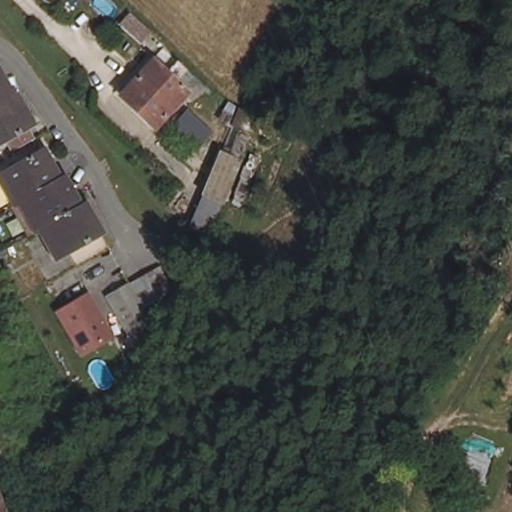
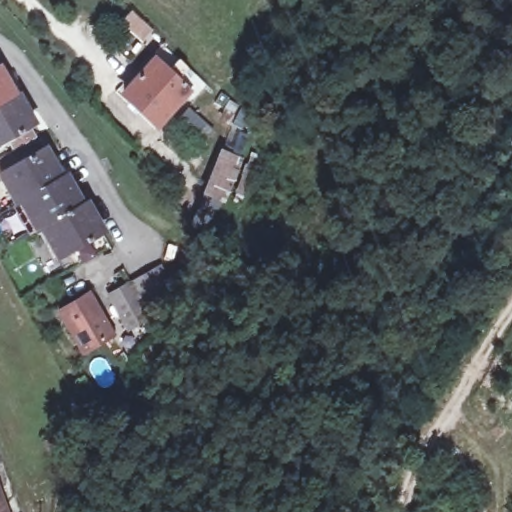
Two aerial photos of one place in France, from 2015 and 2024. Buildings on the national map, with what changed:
unchanged [(139,49),(115,26),(130,10),(156,31),(139,49)]
unchanged [(147,128),(115,98),(149,61),(145,56),(150,49),(170,69),(162,80),(166,85),(177,74),(192,90),(182,101),(177,97),(147,128)]
unchanged [(15,96),(0,106),(0,70),(15,96)]
unchanged [(15,96),(20,94),(37,124),(0,147),(0,106),(15,96)]
unchanged [(162,130),(174,118),(197,138),(185,151),(162,130)]
unchanged [(22,205),(19,208),(10,192),(13,189),(6,176),(48,151),(65,179),(22,205)]
unchanged [(226,159),(244,164),(228,203),(211,196),(226,159)]
unchanged [(65,179),(68,178),(84,205),(43,230),(42,231),(32,215),(29,217),(22,205),(65,179)]
unchanged [(84,205),(88,202),(105,231),(64,257),(55,243),(50,244),(43,230),(84,205)]
unchanged [(179,287),(144,304),(154,322),(129,334),(107,286),(167,260),(179,287)]
unchanged [(88,287),(115,338),(82,357),(55,305),(88,287)]
unchanged [(0,487),(0,458),(21,512),(10,512),(0,487)]
unchanged [(2,512),(0,512),(0,508),(2,512)]

